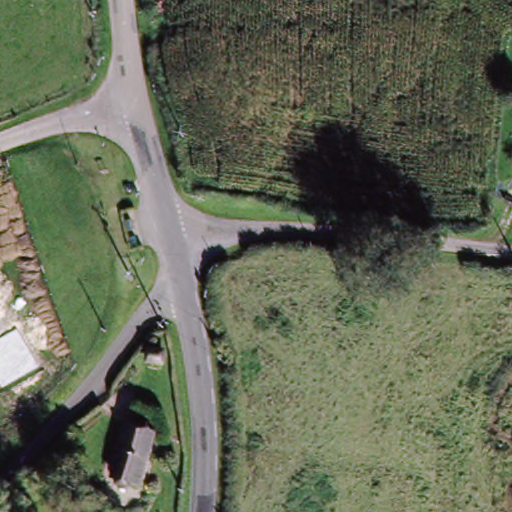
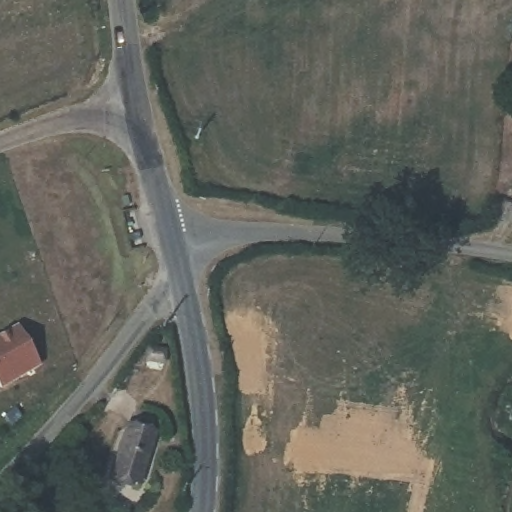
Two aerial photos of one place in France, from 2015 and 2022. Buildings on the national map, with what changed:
new [(1,390),(0,388),(0,338),(17,329),(41,368),(1,390)]
unchanged [(164,357),(164,368),(148,366),(150,355),(164,357)]
unchanged [(152,431),(138,479),(115,472),(129,424),(152,431)]

